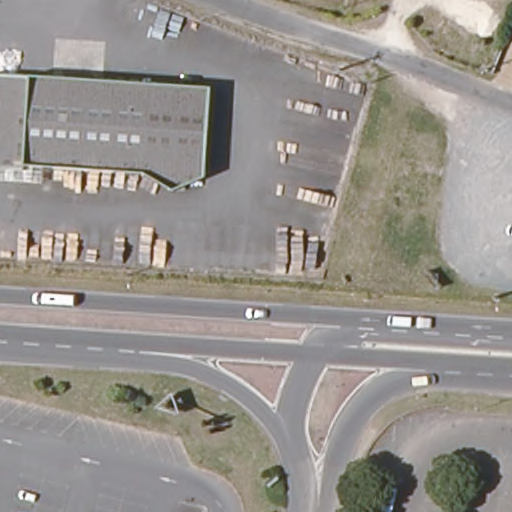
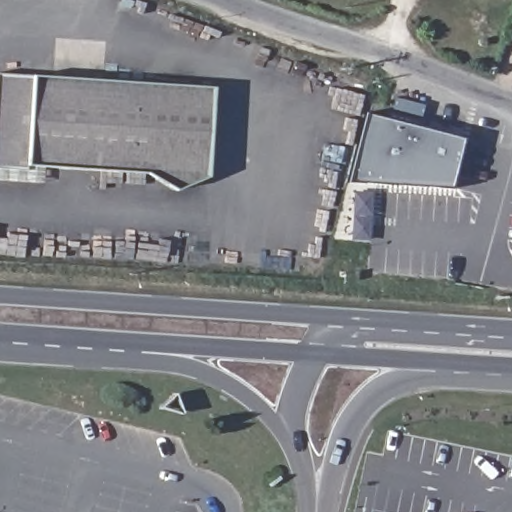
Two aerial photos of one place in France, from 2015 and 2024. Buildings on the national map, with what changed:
unchanged [(152,174),(30,167),(30,172),(0,170),(0,75),(157,86),(152,174)]
unchanged [(216,89),(212,179),(181,192),(152,174),(157,86),(216,89)]
new [(342,184),(361,112),(461,139),(449,189),(342,184)]

